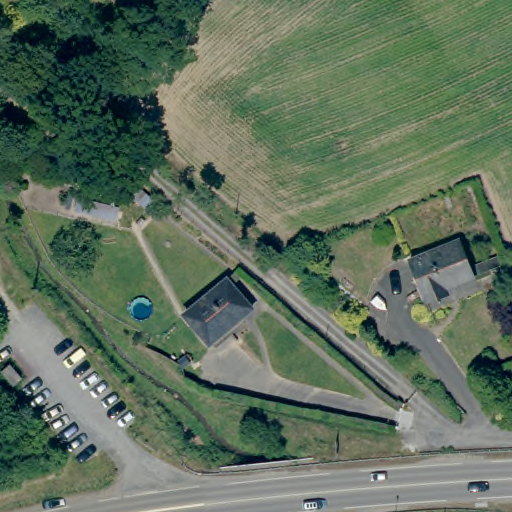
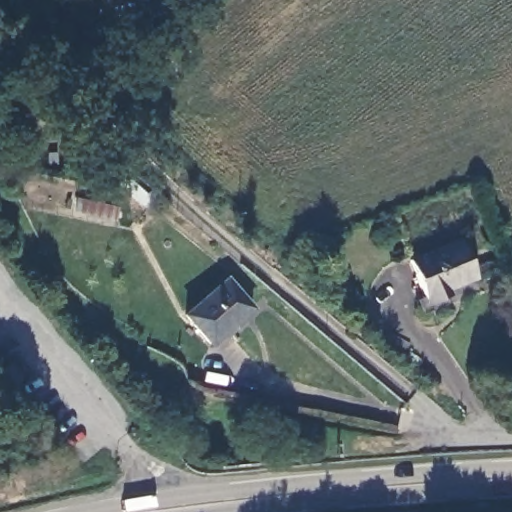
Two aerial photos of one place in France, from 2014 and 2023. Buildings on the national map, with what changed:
unchanged [(126,188),(132,181),(164,207),(157,214),(126,188)]
unchanged [(116,207),(112,221),(77,214),(79,200),(116,207)]
unchanged [(410,260),(461,241),(477,280),(450,290),(451,296),(427,303),(425,299),(410,260)]
unchanged [(252,308),(211,343),(189,317),(229,282),(252,308)]
unchanged [(22,376),(15,383),(4,370),(10,363),(22,376)]

